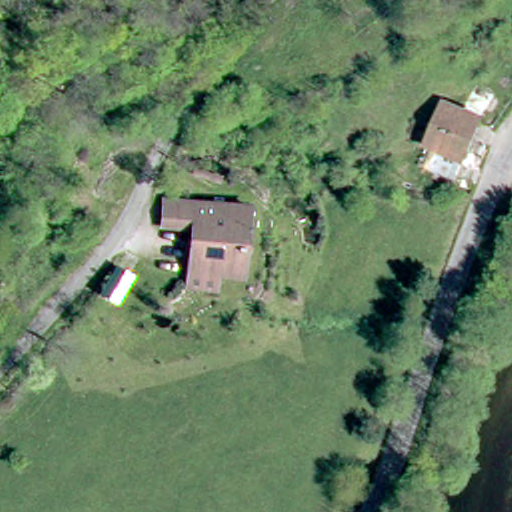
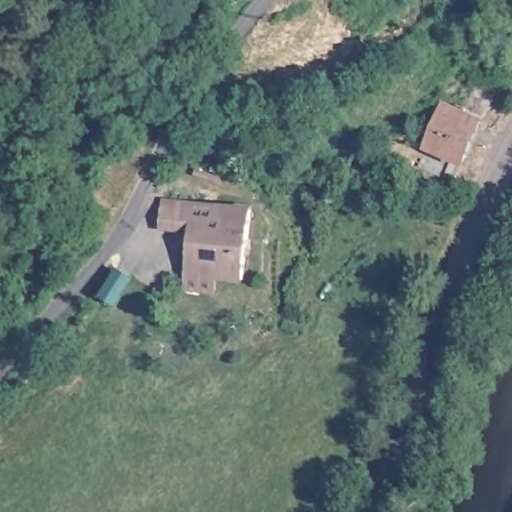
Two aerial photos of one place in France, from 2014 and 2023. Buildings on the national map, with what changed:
unchanged [(415,148),(432,102),(485,118),(461,161),(415,148)]
unchanged [(188,286),(190,240),(160,235),(170,192),(255,200),(246,289),(188,286)]

